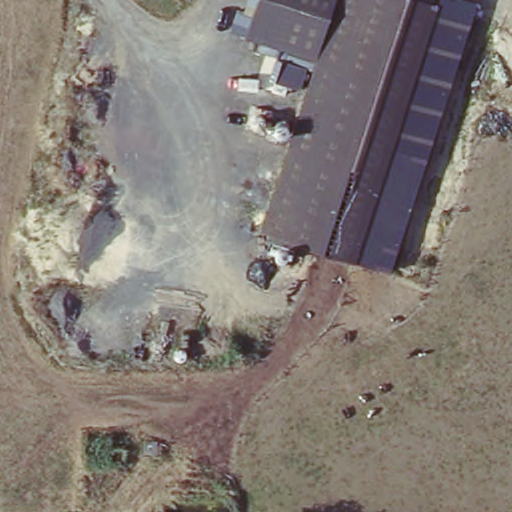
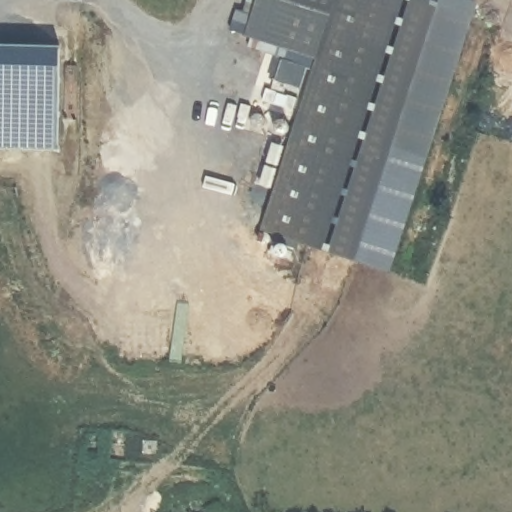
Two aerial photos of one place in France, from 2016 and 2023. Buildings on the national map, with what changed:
unchanged [(240,9),(252,12),(256,0),(434,0),(354,252),(261,222),(315,54),(246,31),(234,27),(240,9)]
unchanged [(386,260),(354,252),(434,0),(436,0),(471,10),(386,260)]
new [(0,45),(59,46),(58,149),(0,148),(0,45)]
unchanged [(306,65),(300,85),(275,77),(281,57),(306,65)]

